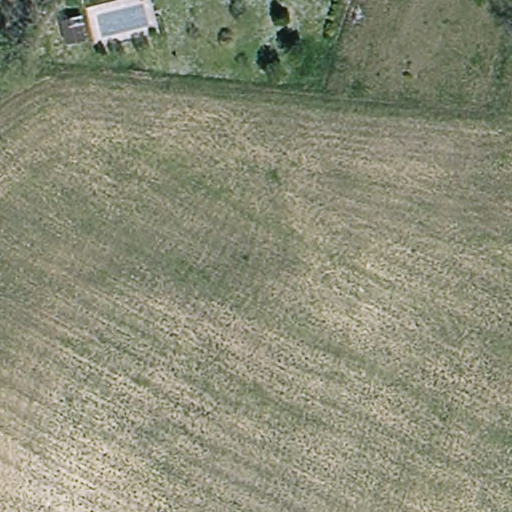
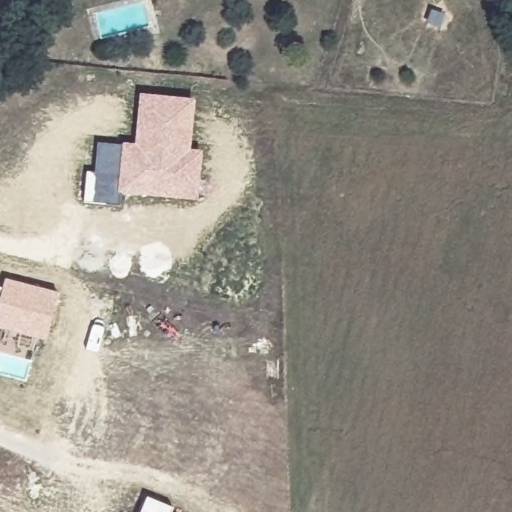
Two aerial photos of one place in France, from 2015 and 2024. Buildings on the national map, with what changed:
new [(118,206),(84,202),(87,170),(95,172),(98,144),(122,145),(122,141),(135,142),(140,94),(195,99),(190,149),(202,149),(197,200),(119,191),(118,206)]
new [(46,340),(0,328),(0,288),(3,288),(5,278),(58,292),(46,340)]
new [(173,507),(171,512),(141,512),(147,496),(173,507)]

